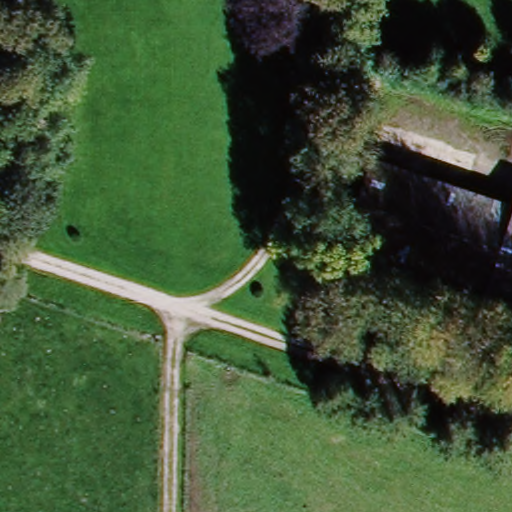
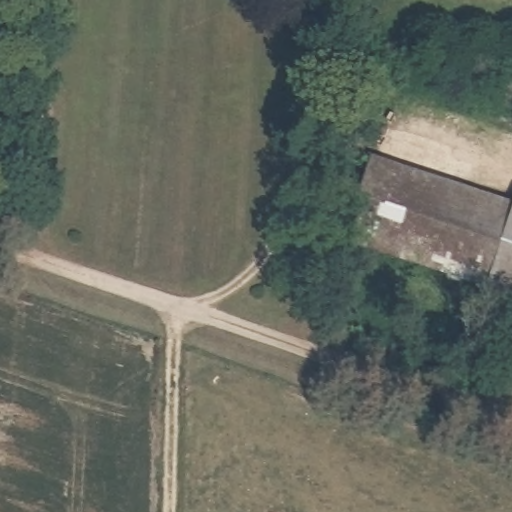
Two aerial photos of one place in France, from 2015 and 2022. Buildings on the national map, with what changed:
unchanged [(508,216),(366,162),(368,155),(512,205),(512,318),(478,305),(494,258),(508,216)]
unchanged [(478,305),(334,254),(351,205),(366,162),(508,216),(494,258),(478,305)]

